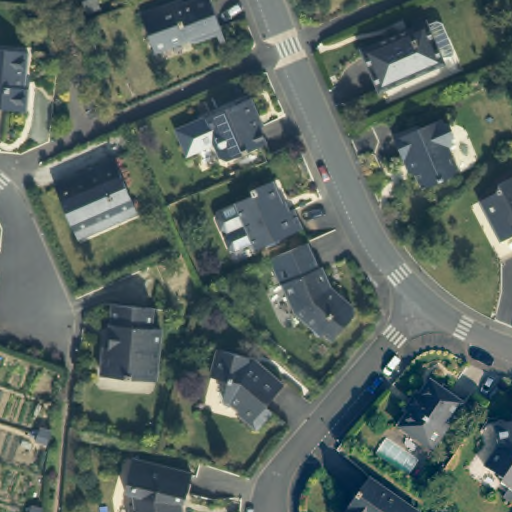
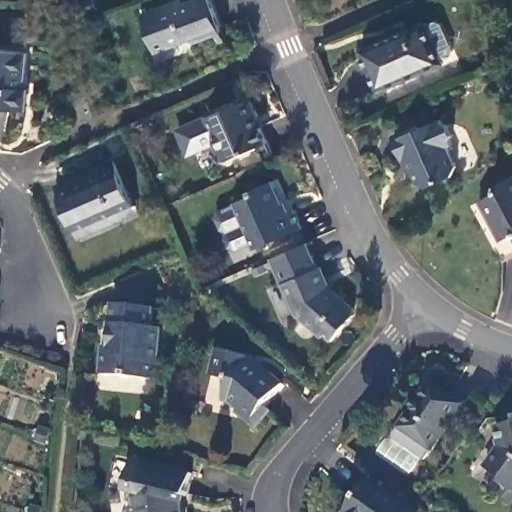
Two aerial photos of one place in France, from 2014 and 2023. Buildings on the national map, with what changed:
unchanged [(220,26),(191,37),(186,35),(167,43),(162,30),(150,32),(142,11),(171,0),(176,0),(177,4),(187,0),(211,0),(220,26)]
unchanged [(424,19),(442,60),(377,87),(361,46),(424,19)]
unchanged [(0,52),(28,55),(25,90),(29,90),(27,112),(0,109),(0,52)]
unchanged [(251,95),(258,112),(255,114),(266,139),(226,156),(218,153),(212,139),(188,149),(177,125),(251,95)]
unchanged [(100,115),(89,120),(83,105),(94,100),(100,115)]
unchanged [(420,122),(425,124),(445,115),(447,119),(453,120),(458,130),(456,137),(457,141),(453,143),(461,162),(458,171),(432,183),(423,180),(414,160),(410,161),(397,132),(420,122)]
unchanged [(49,178),(63,171),(91,160),(109,151),(129,197),(132,205),(109,215),(98,220),(73,230),(68,220),(49,178)]
unchanged [(512,225),(495,232),(473,192),(490,184),(494,174),(510,167),(512,171),(512,225)]
unchanged [(254,245),(244,221),(227,228),(220,225),(216,215),(218,209),(235,201),(235,200),(253,191),(251,186),(273,177),(287,207),(294,205),(302,225),(254,245)]
unchanged [(318,270),(320,268),(331,291),(352,310),(352,317),(330,342),(323,336),(320,338),(293,315),(270,260),(307,245),(318,270)]
unchanged [(139,374),(95,370),(97,342),(102,342),(107,300),(145,305),(143,323),(154,325),(151,350),(149,375),(139,374)]
unchanged [(217,346),(248,354),(248,357),(249,358),(256,363),(257,361),(281,382),(264,403),(269,406),(255,425),(239,410),(240,400),(224,395),(228,377),(211,372),(217,346)]
unchanged [(427,446),(395,424),(405,408),(402,405),(412,392),(415,394),(426,379),(458,401),(427,446)]
unchanged [(500,480),(502,477),(485,465),(499,443),(496,424),(512,420),(512,489),(500,480)]
unchanged [(181,493),(176,492),(175,500),(176,512),(128,512),(126,504),(130,501),(128,488),(120,487),(128,455),(186,470),(181,493)]
unchanged [(419,512),(346,512),(346,511),(346,509),(369,476),(419,511),(419,512)]

